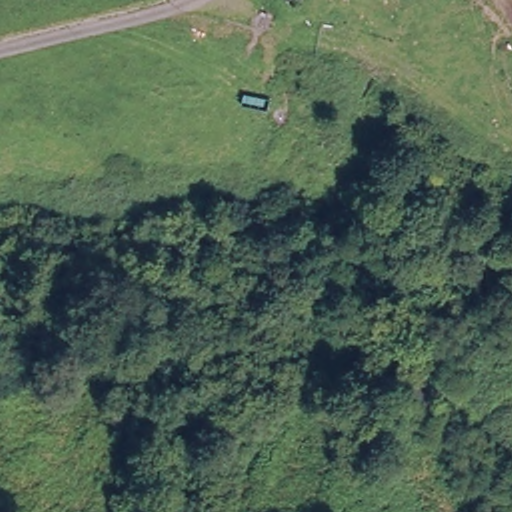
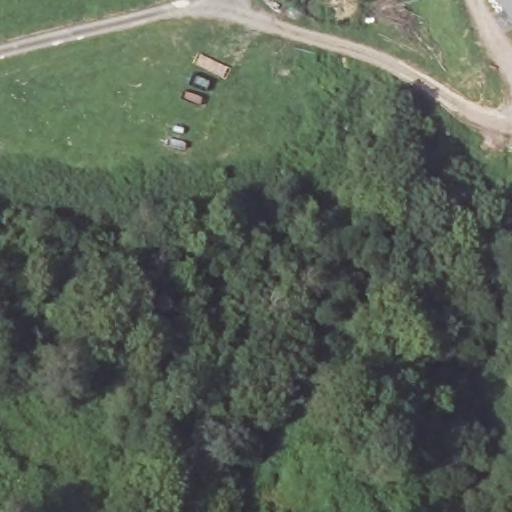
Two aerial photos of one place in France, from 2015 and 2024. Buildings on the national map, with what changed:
new [(494,0),(512,0),(512,25),(494,0)]
unchanged [(450,404),(437,373),(462,362),(476,393),(450,404)]

